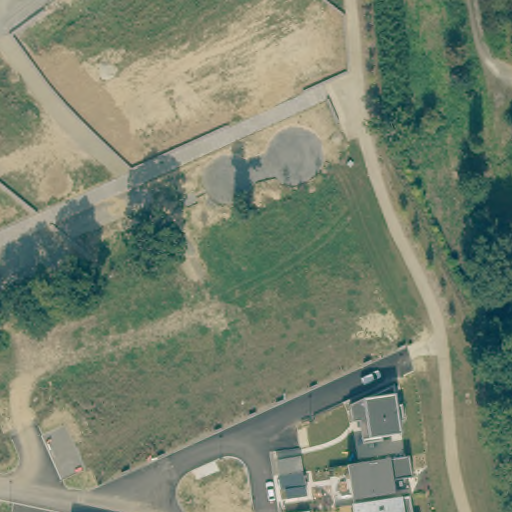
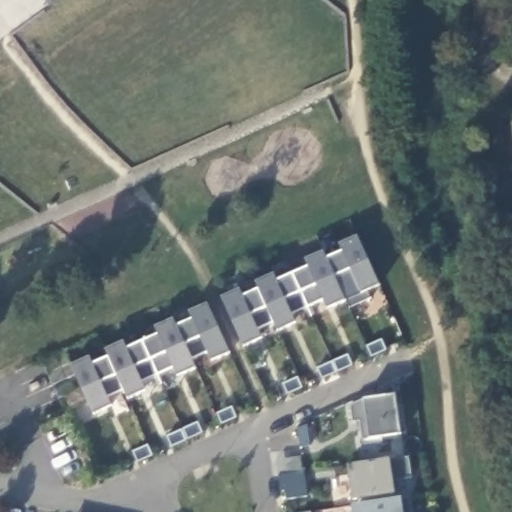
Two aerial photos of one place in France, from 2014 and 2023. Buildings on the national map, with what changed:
new [(241,291),(244,297),(260,290),(257,282),(275,275),(278,282),(310,268),(306,260),(325,252),(327,259),(344,252),(341,244),(359,237),(380,286),(363,293),(359,286),(342,294),(346,302),(328,310),(325,302),(293,315),(297,323),(278,332),(274,323),(259,330),(263,338),(245,348),(223,297),(241,291)]
new [(111,357),(106,349),(125,342),(128,349),(160,335),(156,327),(174,320),(177,327),(193,318),(190,312),(208,305),(229,355),(213,362),(209,352),(192,361),(197,369),(178,377),(175,368),(143,383),(147,392),(128,400),(125,392),(109,398),(113,407),(95,415),(73,366),(91,358),(94,366),(111,357)]
unchanged [(360,422),(355,421),(352,403),(395,387),(398,397),(401,434),(382,437),(382,440),(364,443),(360,422)]
unchanged [(286,489),(283,490),(278,461),(301,456),(307,495),(288,498),(286,489)]
unchanged [(349,466),(391,460),(411,456),(414,475),(394,479),(396,493),(354,500),(349,466)]
unchanged [(402,498),(403,512),(355,512),(354,506),(402,498)]

